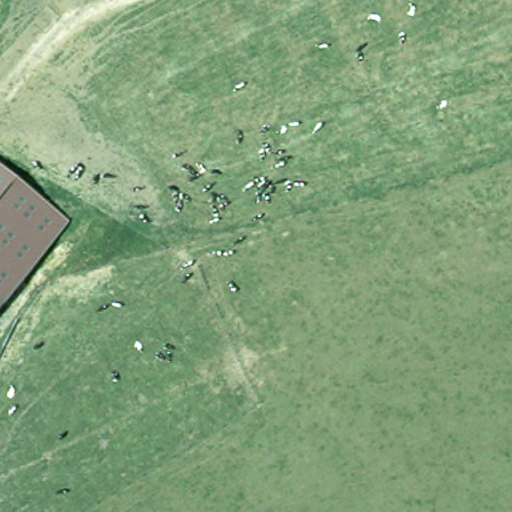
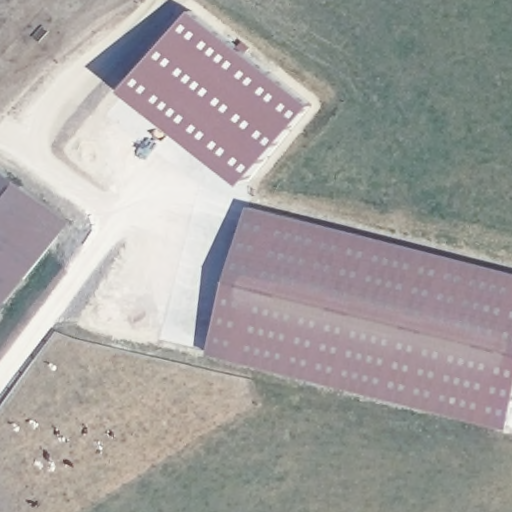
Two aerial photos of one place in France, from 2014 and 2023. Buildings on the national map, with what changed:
new [(248,182),(131,87),(194,9),(311,105),(248,182)]
unchanged [(0,305),(0,170),(65,222),(0,305)]
new [(250,205),(512,272),(512,411),(508,427),(211,350),(250,205)]

